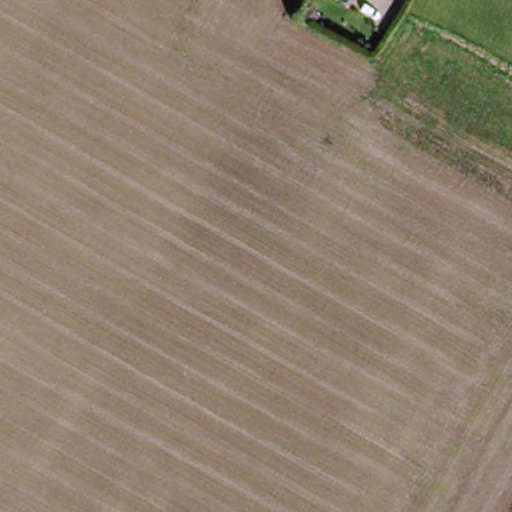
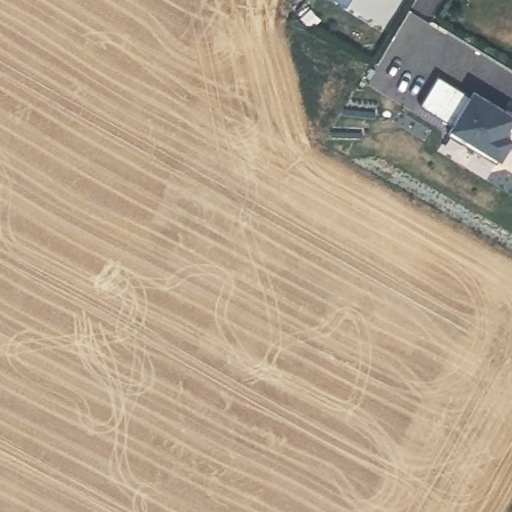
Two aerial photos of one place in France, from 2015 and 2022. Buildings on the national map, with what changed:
new [(438,76),(472,97),(475,93),(512,115),(512,140),(497,165),(448,136),(453,127),(420,107),(438,76)]

